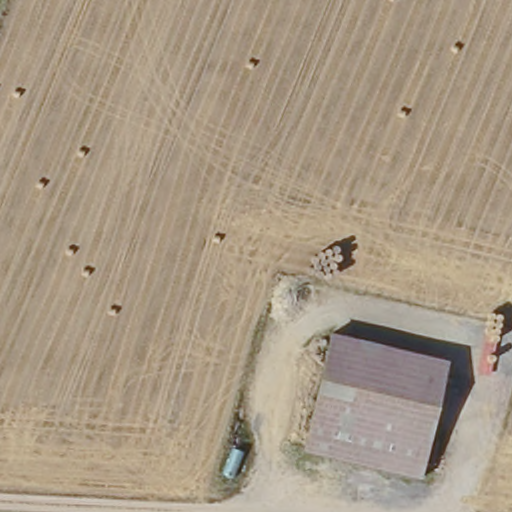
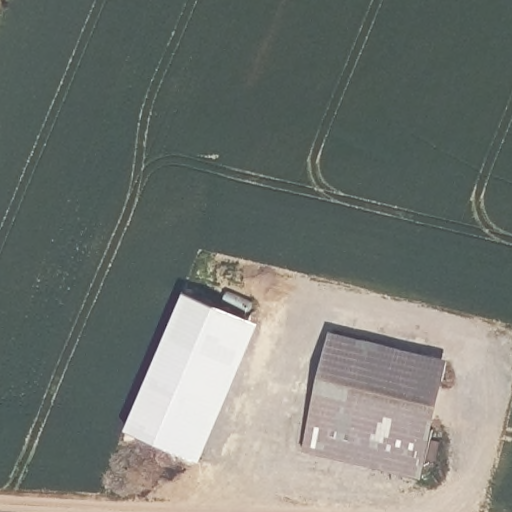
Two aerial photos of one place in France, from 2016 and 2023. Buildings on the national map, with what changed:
new [(263,330),(202,464),(134,430),(193,298),(263,330)]
unchanged [(301,445),(329,333),(448,363),(421,479),(301,445)]

